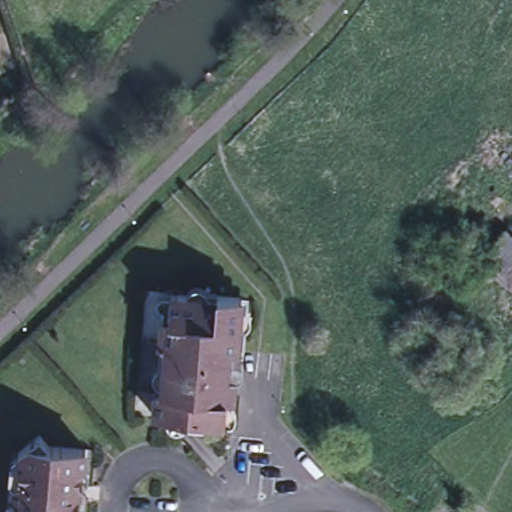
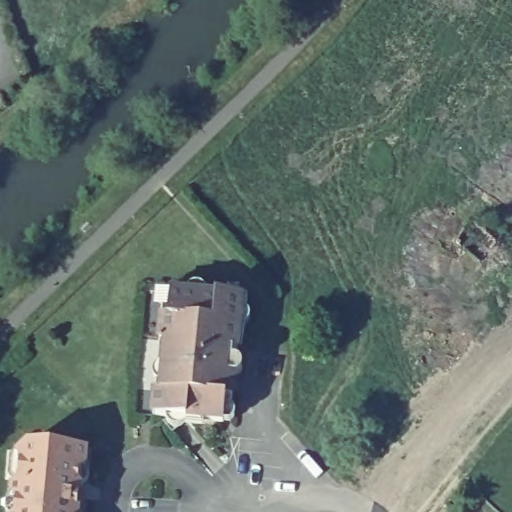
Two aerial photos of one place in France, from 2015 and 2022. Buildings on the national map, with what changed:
unchanged [(453,236),(471,216),(494,236),(504,225),(512,231),(512,285),(477,256),(453,236)]
unchanged [(160,354),(161,327),(167,328),(168,301),(215,304),(215,302),(239,304),(236,356),(233,356),(233,366),(237,367),(240,369),(242,372),(243,374),(243,377),(242,379),(241,382),(238,383),(235,383),(233,407),(227,407),(225,431),(189,428),(174,442),(162,426),(155,426),(156,402),(162,402),(165,354),(160,354)]
unchanged [(47,443),(85,445),(81,512),(6,512),(9,458),(33,431),(47,443)]

